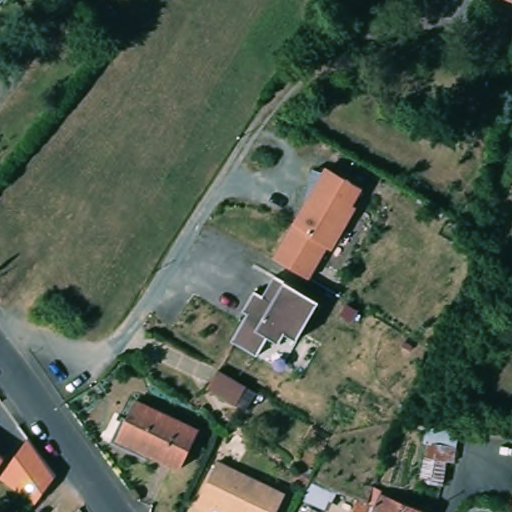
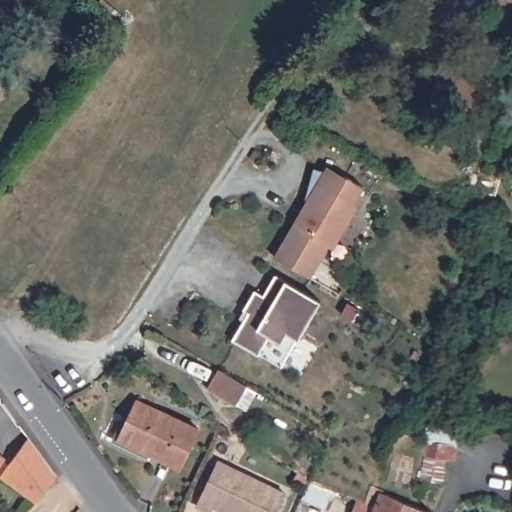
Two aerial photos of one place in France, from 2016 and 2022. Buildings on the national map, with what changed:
unchanged [(327,165),(363,186),(353,204),(357,206),(334,247),(329,244),(310,277),(274,256),(327,165)]
unchanged [(319,300),(297,338),(285,331),(280,341),(268,334),(257,354),(232,339),(247,311),(243,309),(254,289),(263,294),(275,274),(319,300)]
unchanged [(212,387),(223,369),(251,385),(240,404),(212,387)]
unchanged [(130,419),(139,400),(200,428),(182,467),(155,455),(121,439),(130,419)]
unchanged [(35,502),(30,498),(0,476),(29,437),(53,469),(56,474),(35,502)]
unchanged [(436,473),(413,470),(417,445),(439,448),(436,473)]
unchanged [(5,456),(0,463),(0,452),(5,456)]
unchanged [(216,461),(284,494),(275,512),(205,512),(193,506),(216,461)]
unchanged [(370,502),(378,484),(387,487),(386,491),(432,512),(376,512),(379,506),(370,502)]
unchanged [(512,512),(511,512),(512,508),(512,512)]

